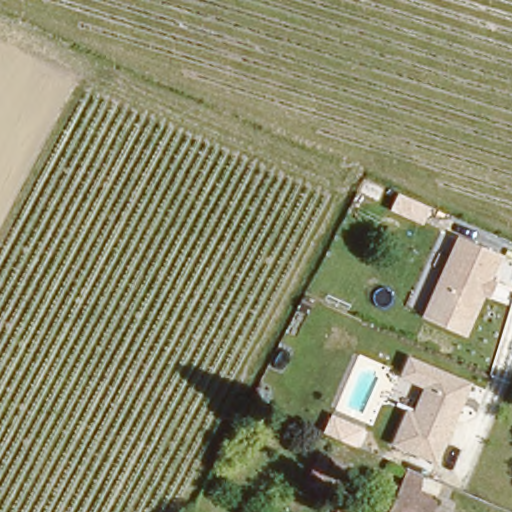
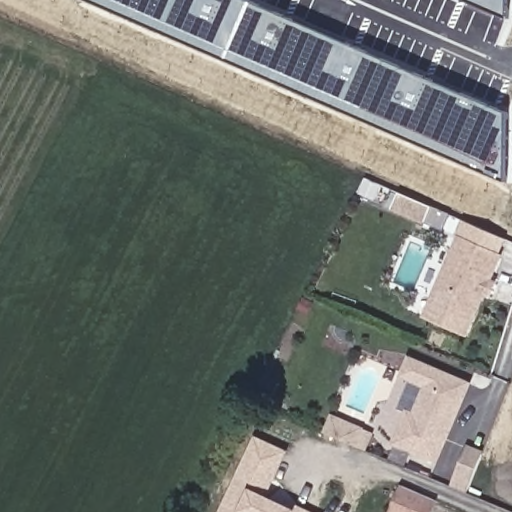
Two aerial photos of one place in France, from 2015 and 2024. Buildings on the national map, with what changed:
new [(508,113),(509,184),(86,0),(247,0),(508,113)]
new [(509,20),(463,0),(510,0),(509,20)]
new [(398,192),(430,206),(424,222),(391,208),(398,192)]
unchanged [(459,234),(505,255),(495,278),(501,281),(492,298),(487,296),(469,337),(422,317),(459,234)]
unchanged [(475,382),(438,462),(391,444),(407,407),(415,410),(426,389),(399,378),(409,355),(475,382)]
new [(322,432),(330,414),(363,428),(374,434),(367,450),(322,432)]
new [(293,508),(295,504),(312,512),(218,512),(254,435),(288,450),(265,495),(293,508)]
demolished [(343,477),(330,471),(324,484),(308,477),(322,449),(350,462),(343,477)]
unchanged [(446,485),(433,512),(390,512),(411,468),(446,485)]
demolished [(349,512),(338,512),(339,508),(349,512)]

